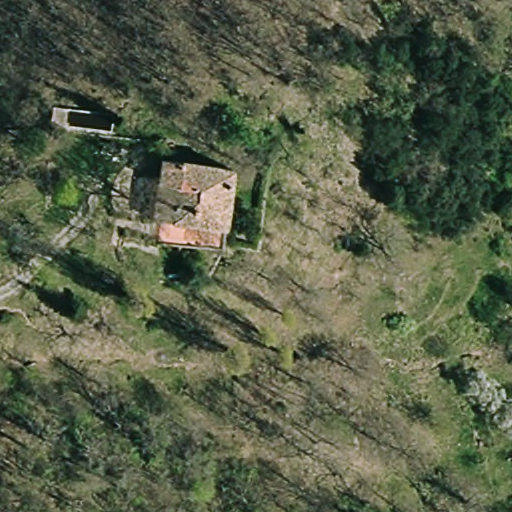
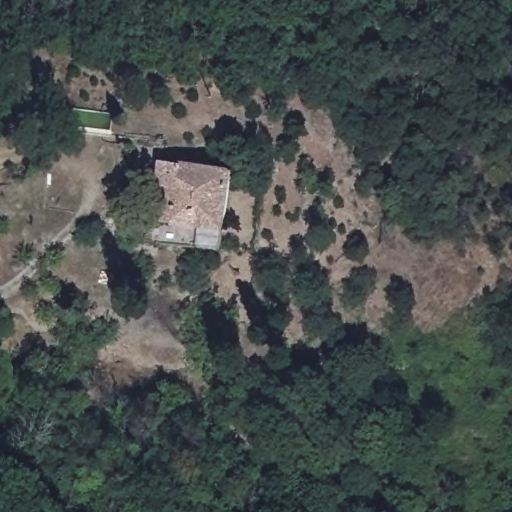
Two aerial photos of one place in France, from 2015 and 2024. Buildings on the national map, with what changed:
unchanged [(167,230),(152,228),(162,170),(174,173),(229,184),(220,242),(167,230)]

